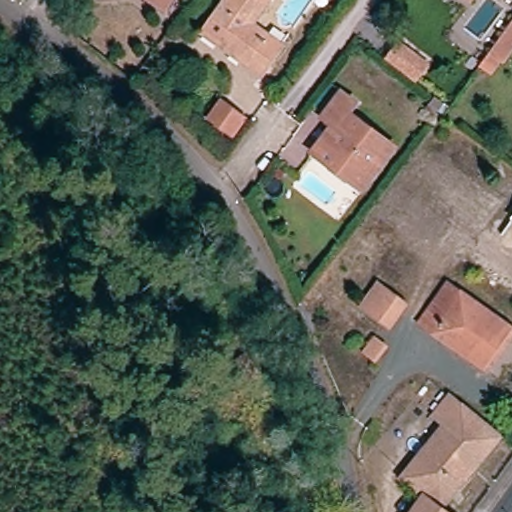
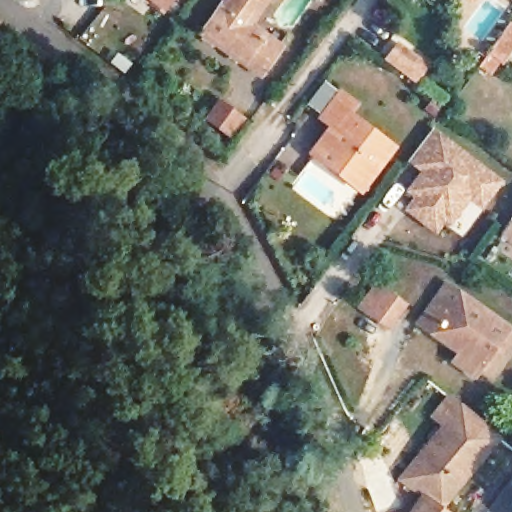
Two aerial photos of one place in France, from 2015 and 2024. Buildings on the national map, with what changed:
unchanged [(142,0),(169,0),(160,12),(142,0)]
unchanged [(272,0),(255,24),(284,45),(263,75),(203,34),(226,0),(272,0)]
unchanged [(466,0),(478,0),(474,6),(466,0)]
unchanged [(502,64),(500,62),(490,75),(478,66),(512,19),(512,51),(502,64)]
unchanged [(431,64),(415,86),(382,61),(400,39),(431,64)]
unchanged [(331,170),(316,158),(333,137),(316,125),(340,95),(356,107),(349,116),(394,151),(366,187),(361,193),(331,170)]
unchanged [(250,120),(235,142),(204,120),(220,97),(250,120)]
new [(481,209),(470,200),(453,224),(447,220),(436,233),(405,210),(415,197),(406,191),(422,170),(410,160),(434,126),(505,179),(481,209)]
unchanged [(511,219),(512,218),(512,219),(511,219)]
unchanged [(382,287),(412,310),(393,334),(364,311),(382,287)]
unchanged [(451,287),(512,328),(512,353),(495,378),(422,326),(451,287)]
unchanged [(378,341),(393,352),(381,368),(366,357),(378,341)]
unchanged [(445,510),(448,512),(414,512),(422,500),(401,482),(443,428),(433,420),(449,400),(498,441),(445,510)]

